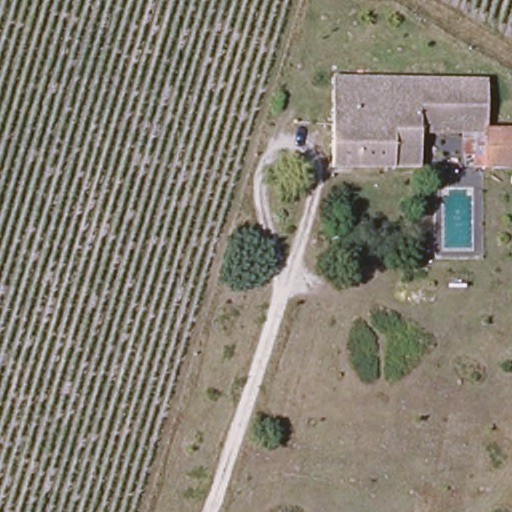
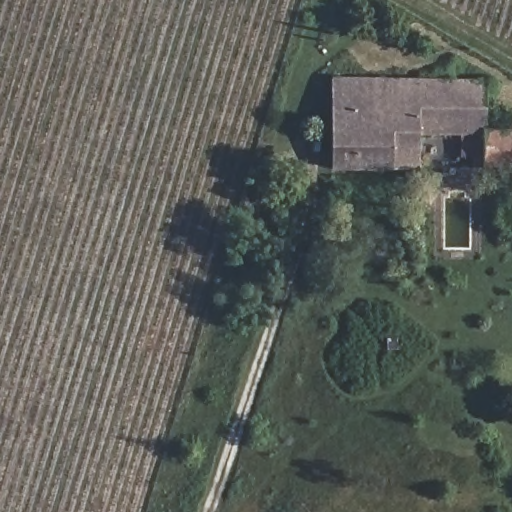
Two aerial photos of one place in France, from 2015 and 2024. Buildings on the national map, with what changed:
unchanged [(418,170),(334,170),(333,83),(450,82),(477,81),(484,81),(485,122),(485,129),(470,129),(418,129),(418,170)]
unchanged [(512,169),(485,169),(485,131),(512,131),(512,169)]

